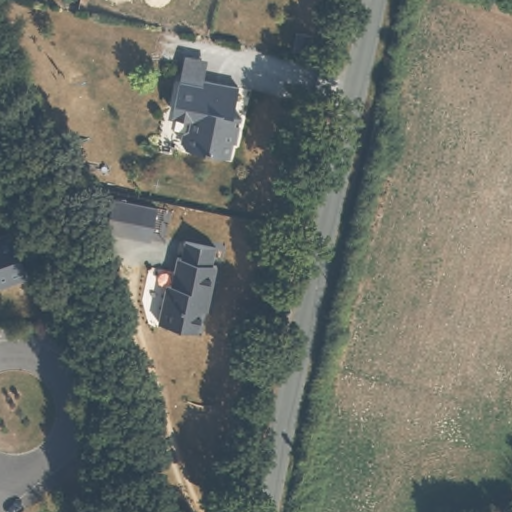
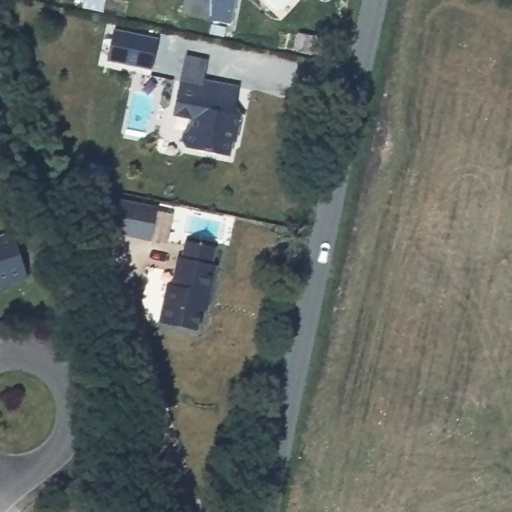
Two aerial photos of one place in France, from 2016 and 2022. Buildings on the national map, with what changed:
new [(151,69),(108,61),(113,29),(158,37),(151,69)]
unchanged [(185,56),(207,62),(203,77),(238,85),(234,105),(229,107),(233,112),(239,114),(234,140),(230,140),(228,155),(184,145),(180,139),(182,130),(188,126),(191,112),(172,108),(179,78),(185,56)]
unchanged [(109,198),(153,208),(146,240),(102,230),(109,198)]
unchanged [(4,285),(1,281),(0,281),(0,236),(7,234),(23,280),(4,285)]
unchanged [(208,270),(214,271),(207,302),(195,300),(189,332),(154,322),(161,290),(165,286),(171,261),(175,262),(180,240),(212,246),(208,270)]

